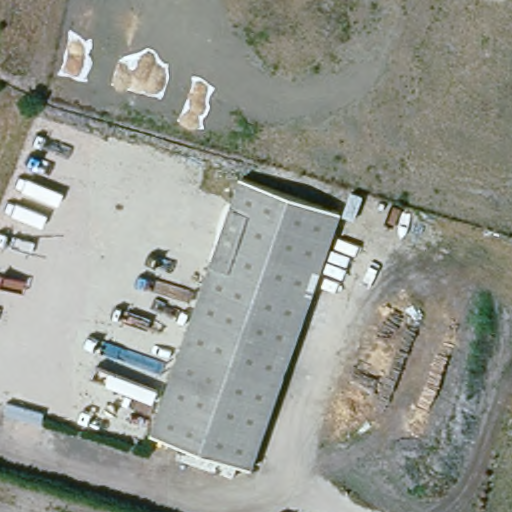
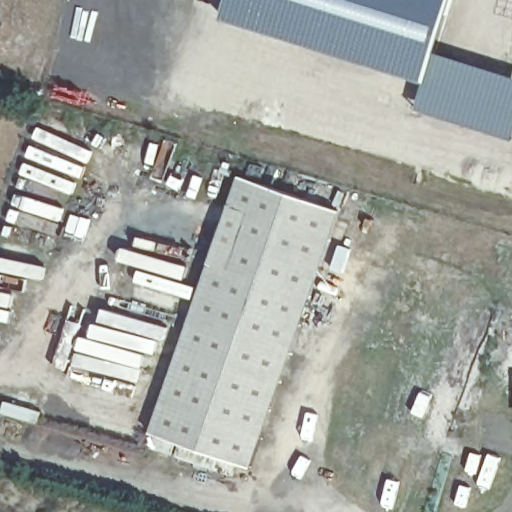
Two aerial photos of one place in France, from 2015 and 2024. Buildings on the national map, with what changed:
new [(453,0),(437,51),(424,81),(280,37),(224,18),(229,0),(453,0)]
new [(437,51),(512,75),(512,130),(510,137),(414,106),(424,81),(437,51)]
unchanged [(149,427),(238,173),(335,206),(245,460),(149,427)]

